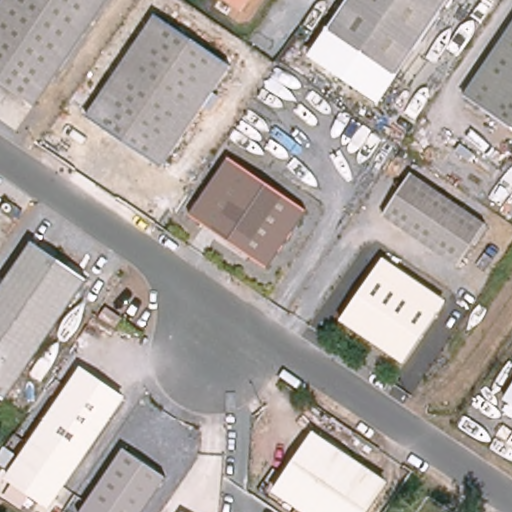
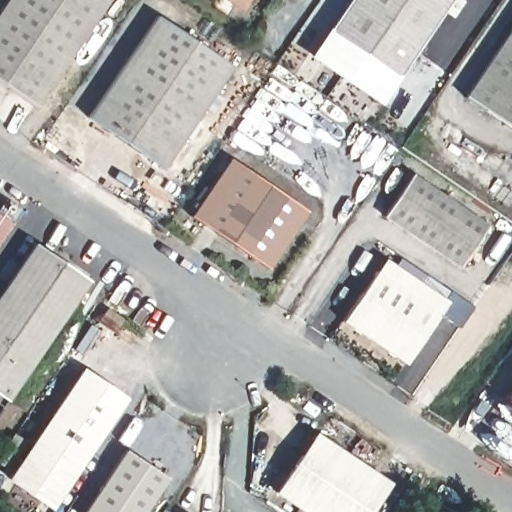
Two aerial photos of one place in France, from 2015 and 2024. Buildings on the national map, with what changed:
unchanged [(0,82),(0,9),(6,0),(110,0),(36,107),(0,82)]
unchanged [(225,0),(244,0),(239,9),(225,0)]
unchanged [(408,63),(391,87),(325,42),(341,18),(339,16),(350,0),(453,0),(410,64),(408,63)]
unchanged [(233,68),(164,168),(90,118),(159,19),(233,68)]
unchanged [(468,97),(512,32),(512,128),(468,97)]
unchanged [(266,267),(189,215),(229,158),(307,211),(266,267)]
unchanged [(488,225),(458,268),(385,219),(415,175),(488,225)]
unchanged [(8,401),(0,396),(0,296),(36,244),(89,282),(8,401)]
unchanged [(449,302),(405,366),(342,324),(387,261),(449,302)]
unchanged [(126,398),(51,509),(8,481),(84,369),(126,398)]
unchanged [(505,400),(512,389),(512,405),(505,400)]
unchanged [(0,410),(0,396),(8,401),(0,410)]
unchanged [(390,483),(370,512),(299,512),(275,495),(316,434),(390,483)]
unchanged [(168,480),(146,512),(86,512),(126,451),(168,480)]

